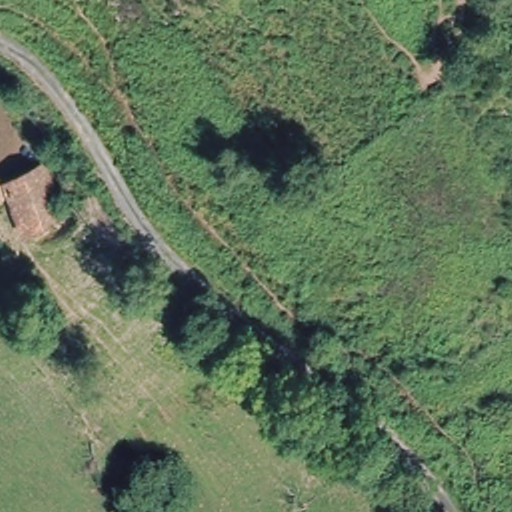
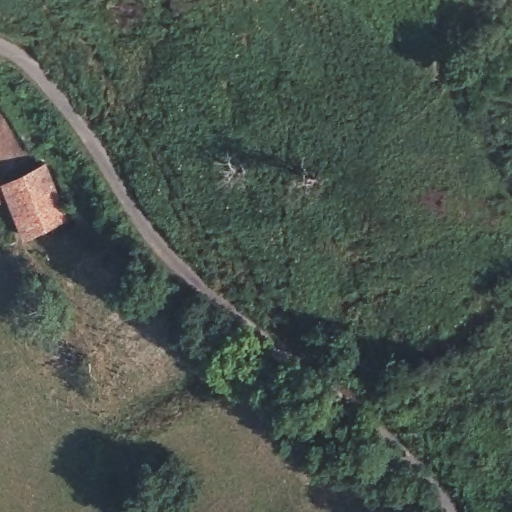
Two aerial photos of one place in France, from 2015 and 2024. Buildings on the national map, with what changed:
unchanged [(22,243),(9,212),(0,215),(0,188),(6,189),(49,178),(70,228),(22,243)]

